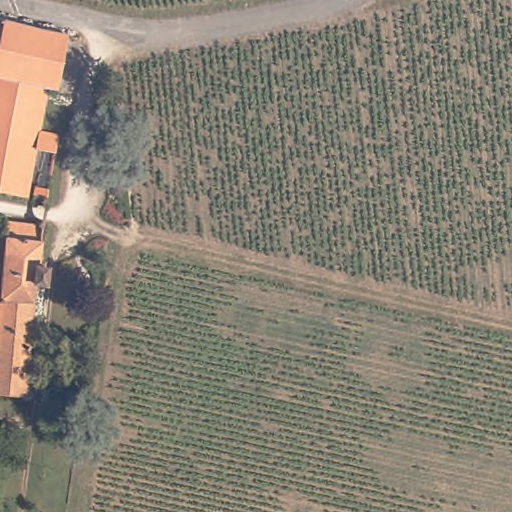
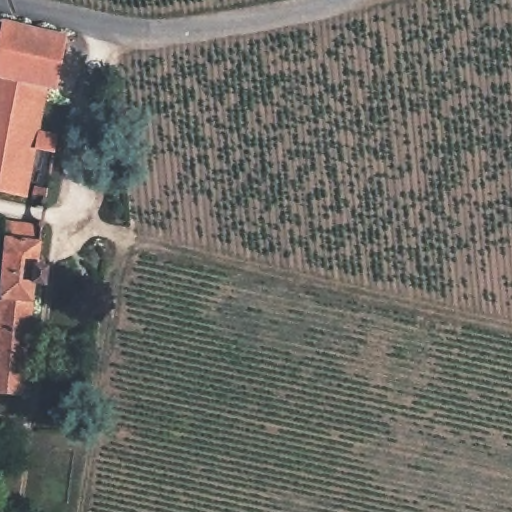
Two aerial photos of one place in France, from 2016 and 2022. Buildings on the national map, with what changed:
unchanged [(69,82),(58,81),(45,121),(63,128),(60,151),(41,146),(26,199),(0,192),(0,16),(74,32),(69,82)]
unchanged [(55,203),(33,200),(34,188),(56,191),(55,203)]
unchanged [(48,225),(48,252),(54,263),(56,276),(54,289),(38,289),(22,399),(0,395),(0,301),(7,222),(48,225)]

